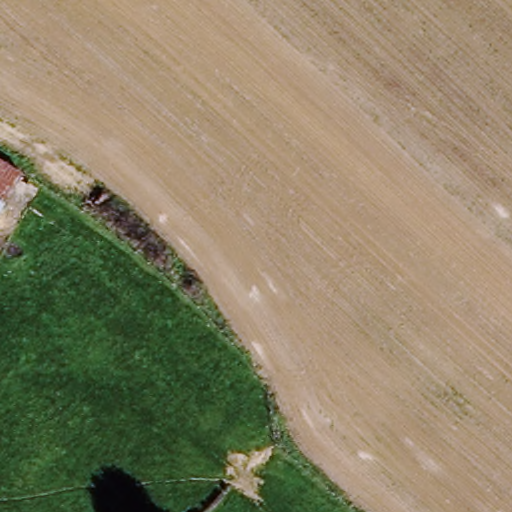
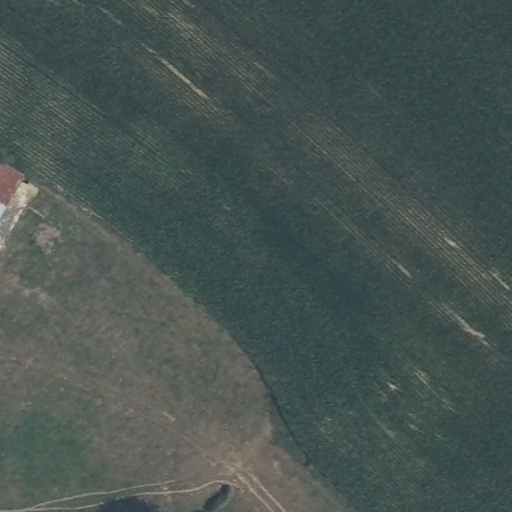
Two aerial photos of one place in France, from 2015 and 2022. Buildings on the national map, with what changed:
unchanged [(0,217),(0,169),(22,184),(0,217)]

